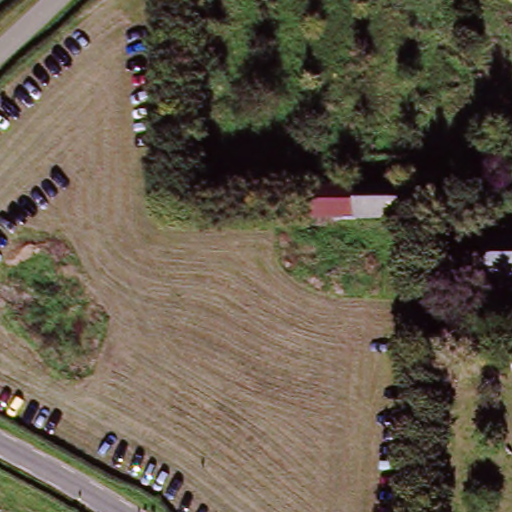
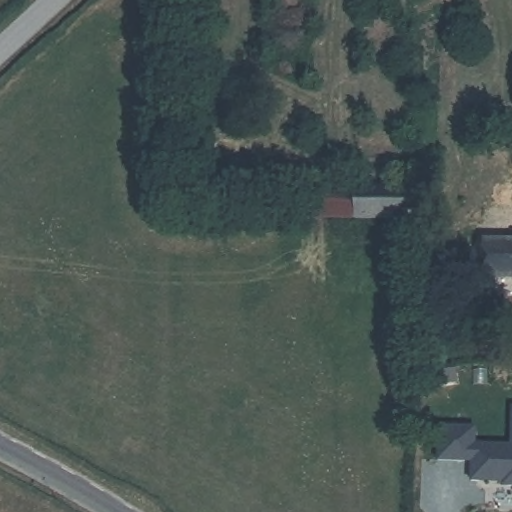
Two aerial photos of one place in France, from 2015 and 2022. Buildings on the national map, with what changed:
unchanged [(360,212),(310,214),(310,192),(310,186),(359,185),(360,212)]
unchanged [(418,185),(418,213),(360,212),(359,185),(418,185)]
unchanged [(488,279),(488,242),(512,243),(512,279),(488,279)]
new [(502,488),(502,483),(468,482),(470,463),(436,462),(438,426),(477,427),(476,443),(510,445),(512,416),(512,488),(502,488)]

